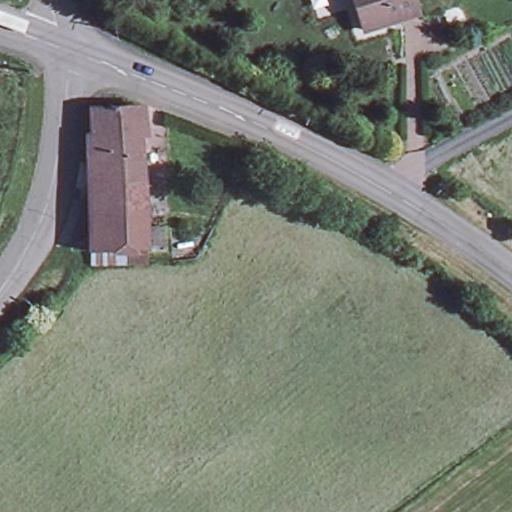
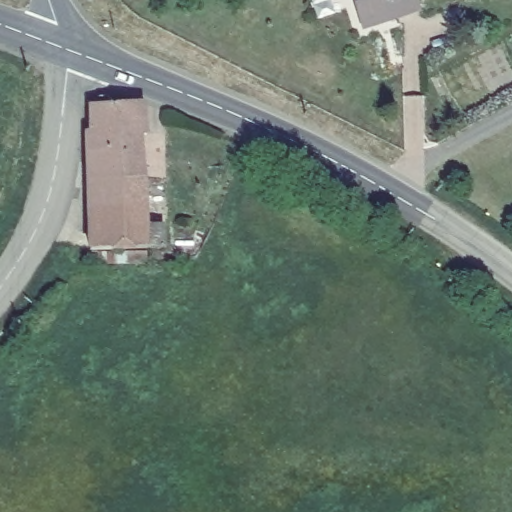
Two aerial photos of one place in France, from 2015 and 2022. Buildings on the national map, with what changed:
unchanged [(363,29),(354,0),(412,0),(417,13),(363,29)]
unchanged [(143,100),(147,130),(139,130),(139,128),(92,129),(92,101),(143,100)]
unchanged [(87,129),(92,129),(139,128),(139,130),(144,175),(89,177),(87,129)]
unchanged [(147,259),(91,259),(91,247),(91,245),(90,209),(89,177),(144,175),(146,223),(165,223),(165,244),(147,244),(147,251),(147,259)]

